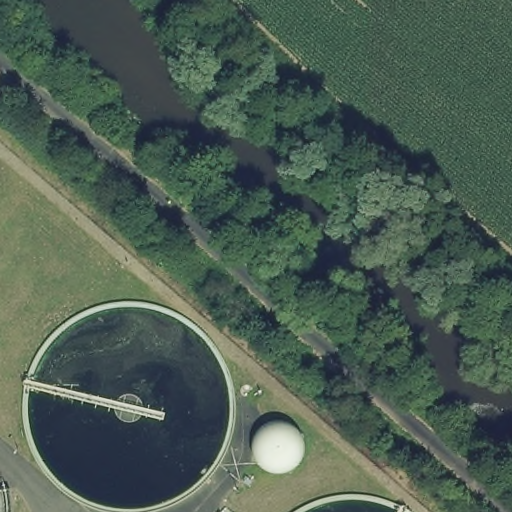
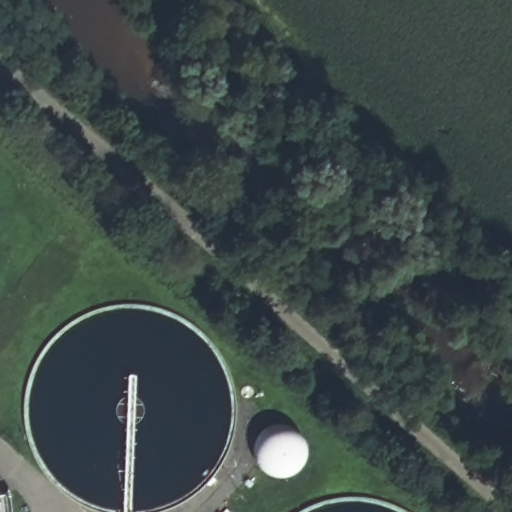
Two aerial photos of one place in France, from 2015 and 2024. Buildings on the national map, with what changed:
unchanged [(257,444),(271,427),(293,426),(309,440),(311,462),(297,478),(275,480),(259,466),(257,444)]

